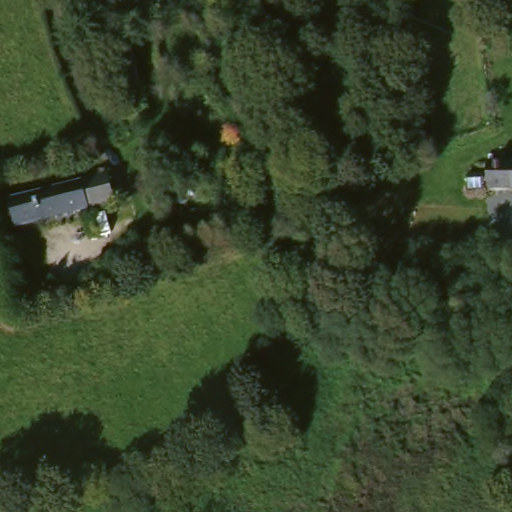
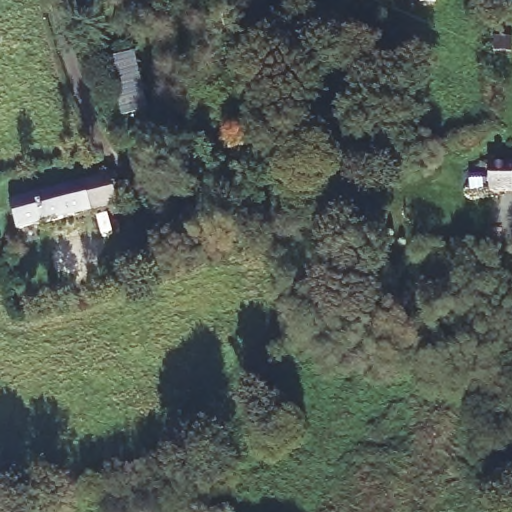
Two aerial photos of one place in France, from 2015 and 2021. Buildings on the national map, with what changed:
unchanged [(116,100),(96,105),(80,48),(102,42),(116,100)]
unchanged [(494,184),(494,155),(512,155),(512,184),(494,184)]
unchanged [(0,207),(104,172),(112,203),(0,240),(0,207)]
unchanged [(203,203),(169,206),(168,184),(202,179),(203,203)]
unchanged [(161,227),(144,227),(144,217),(144,202),(161,200),(161,227)]

